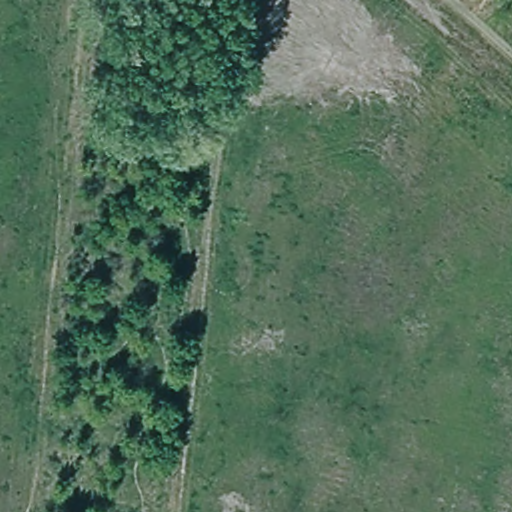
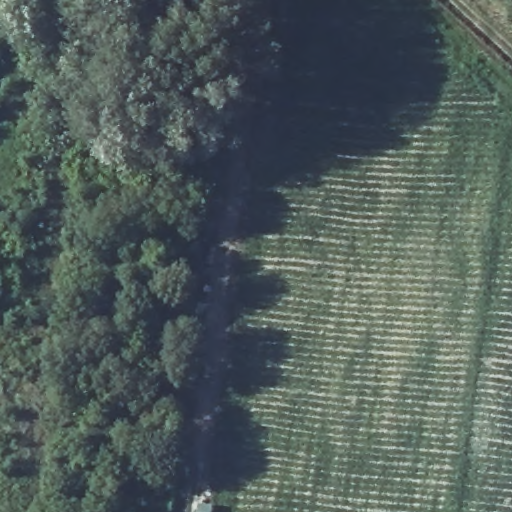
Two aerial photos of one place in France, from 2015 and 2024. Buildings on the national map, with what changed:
[]

